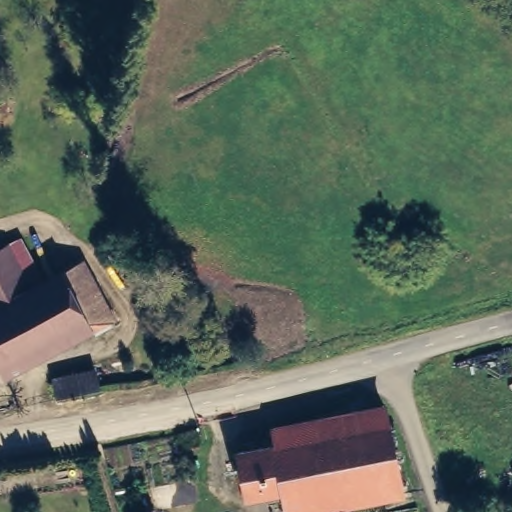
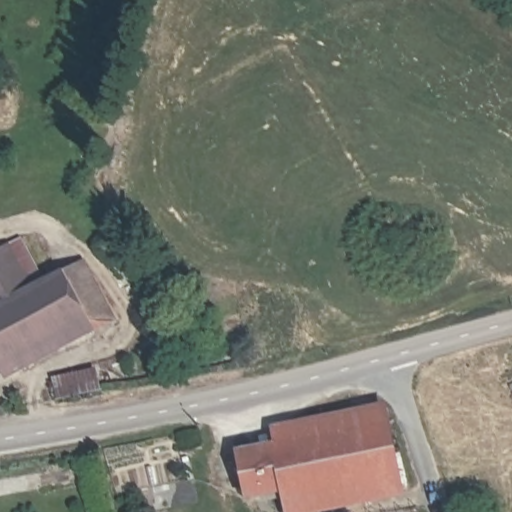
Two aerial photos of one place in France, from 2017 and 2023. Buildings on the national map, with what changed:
unchanged [(2,387),(0,383),(0,249),(22,238),(47,278),(88,261),(119,322),(2,387)]
unchanged [(271,443),(270,427),(390,403),(410,495),(317,512),(282,512),(280,497),(271,443)]
unchanged [(280,497),(242,503),(235,452),(271,443),(280,497)]

